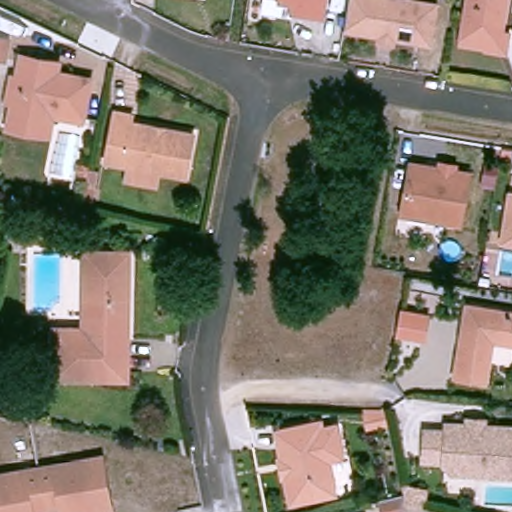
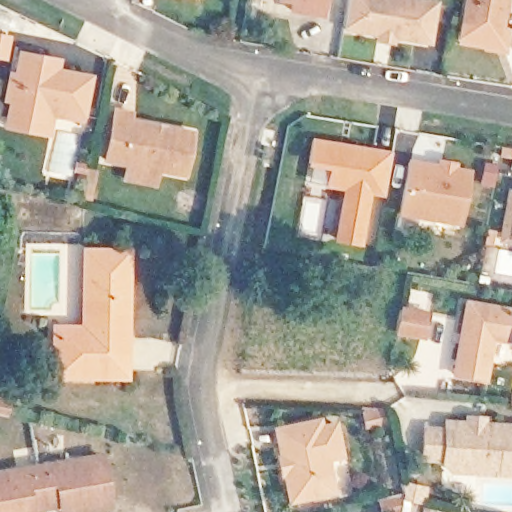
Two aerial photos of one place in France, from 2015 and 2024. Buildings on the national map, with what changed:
unchanged [(291,12),(292,6),(292,4),(280,1),(280,0),(324,0),(321,18),(291,12)]
unchanged [(381,34),(346,27),(351,0),(412,0),(436,5),(427,41),(396,36),(395,44),(380,41),(381,34)]
unchanged [(461,38),(467,0),(506,0),(497,46),(461,38)]
unchanged [(5,61),(0,60),(0,38),(8,40),(5,61)]
unchanged [(85,128),(54,121),(50,141),(2,133),(6,105),(1,103),(7,69),(16,71),(20,53),(60,58),(58,71),(93,77),(85,128)]
unchanged [(121,184),(125,167),(106,163),(115,110),(130,113),(129,121),(151,125),(153,132),(162,134),(167,128),(191,133),(183,179),(160,174),(157,191),(121,184)]
new [(310,136),(388,151),(380,199),(371,197),(361,248),(332,242),(341,190),(322,186),(326,170),(305,165),(310,136)]
unchanged [(467,170),(457,221),(397,211),(403,184),(418,187),(422,166),(450,171),(451,168),(467,170)]
unchanged [(506,195),(512,196),(512,248),(498,246),(498,239),(500,236),(505,203),(506,195)]
unchanged [(86,278),(86,253),(127,253),(127,275),(127,329),(86,320),(86,278)]
unchanged [(465,304),(512,313),(512,343),(489,339),(482,380),(452,375),(465,304)]
unchanged [(428,318),(424,340),(398,335),(400,328),(402,313),(428,318)]
unchanged [(126,378),(59,377),(60,339),(85,340),(86,320),(127,329),(126,378)]
unchanged [(3,411),(0,410),(0,393),(6,395),(3,411)]
unchanged [(382,427),(360,429),(361,412),(379,413),(382,427)]
unchanged [(468,414),(486,415),(486,424),(512,425),(512,472),(454,470),(442,457),(426,456),(427,430),(446,431),(447,423),(467,423),(468,414)]
unchanged [(333,429),(339,453),(325,456),(332,496),(287,504),(283,485),(288,484),(282,450),(277,449),(275,431),(317,424),(319,431),(333,429)]
unchanged [(0,472),(90,457),(103,455),(112,506),(89,510),(77,512),(74,512),(64,512),(62,507),(62,503),(32,508),(32,512),(0,512),(0,472)]
unchanged [(381,506),(390,504),(400,500),(398,492),(421,496),(420,512),(414,512),(402,509),(401,512),(382,512),(381,506)]

